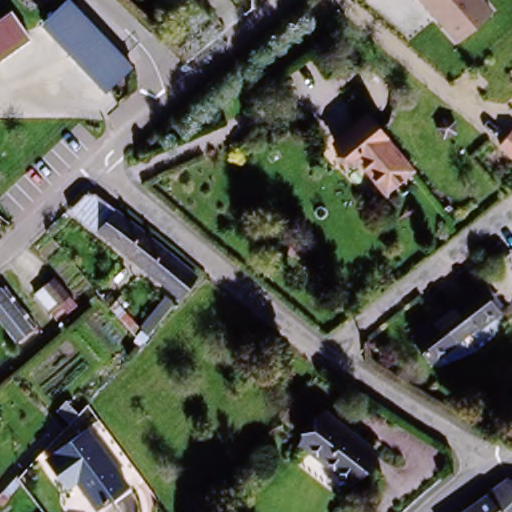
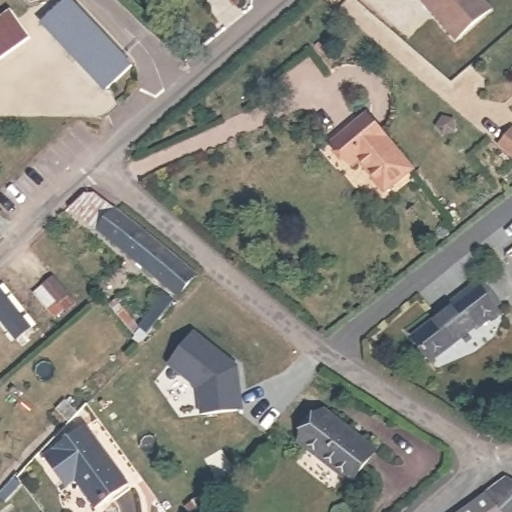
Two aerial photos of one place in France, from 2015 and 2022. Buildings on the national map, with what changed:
unchanged [(459,37),(425,0),(487,0),(493,7),(459,37)]
unchanged [(111,92),(46,22),(71,1),(134,71),(111,92)]
unchanged [(0,54),(0,16),(9,10),(27,35),(0,54)]
unchanged [(412,164),(384,189),(357,159),(351,164),(333,143),(368,112),(412,164)]
unchanged [(179,297),(105,232),(81,208),(94,197),(108,197),(123,212),(197,277),(179,297)]
unchanged [(0,236),(0,232),(2,235),(0,236)]
unchanged [(500,313),(431,363),(413,337),(479,285),(500,313)]
unchanged [(35,327),(24,341),(0,316),(0,292),(1,292),(35,327)]
new [(241,367),(245,412),(203,417),(199,391),(166,366),(196,332),(241,367)]
unchanged [(331,408),(376,453),(348,482),(303,436),(331,408)]
unchanged [(130,487),(101,508),(78,477),(67,487),(63,490),(52,473),(69,460),(64,455),(90,431),(130,487)]
unchanged [(507,486),(512,489),(512,512),(467,512),(481,499),(507,486)]

